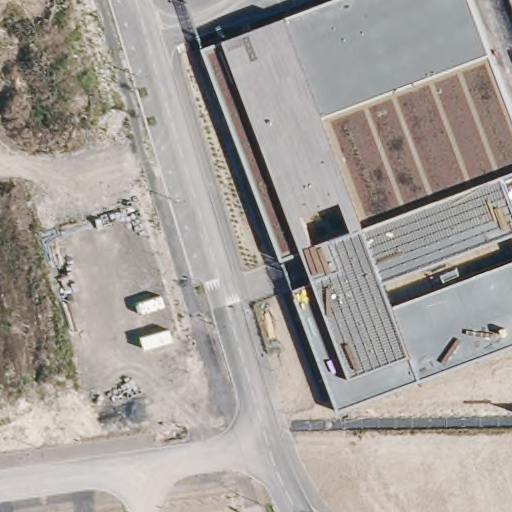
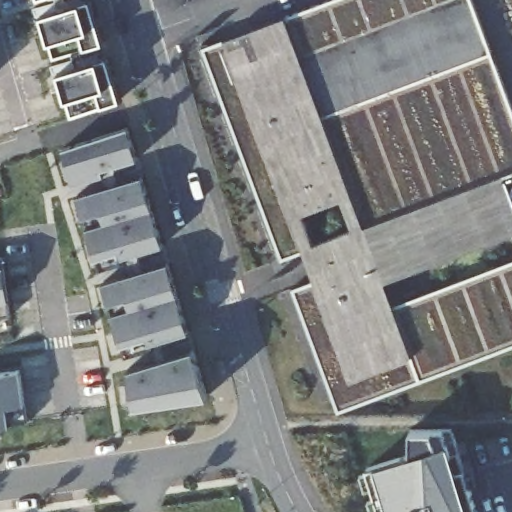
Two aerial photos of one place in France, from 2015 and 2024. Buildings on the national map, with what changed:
unchanged [(512,234),(385,280),(393,305),(512,261),(512,347),(339,410),(292,287),(311,280),(301,252),(282,259),(201,47),(328,0),(471,0),(512,106),(512,234)]
new [(101,42),(53,57),(41,16),(89,1),(101,42)]
new [(118,100),(71,115),(59,73),(106,59),(118,100)]
new [(125,129),(135,157),(100,168),(102,174),(73,183),(64,149),(125,129)]
new [(103,284),(85,290),(82,277),(88,276),(83,258),(76,260),(73,246),(80,245),(66,200),(140,179),(160,245),(123,257),(128,275),(168,262),(187,331),(150,342),(151,349),(125,356),(103,284)]
new [(1,257),(10,315),(0,316),(0,257),(1,257)]
new [(192,351),(206,395),(125,404),(121,387),(133,383),(130,368),(192,351)]
new [(20,370),(25,420),(0,424),(0,374),(20,370)]
new [(376,496),(372,485),(365,488),(361,475),(368,472),(367,467),(410,455),(410,429),(451,428),(457,451),(460,451),(465,470),(472,468),(475,482),(469,484),(477,512),(373,512),(370,500),(376,496)]
new [(220,483),(229,512),(167,512),(163,499),(166,496),(220,483)]

